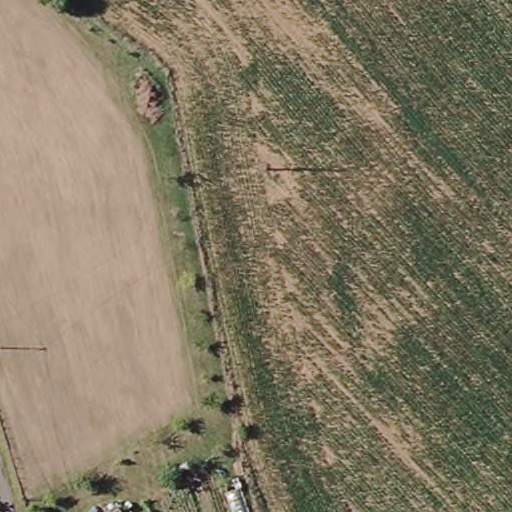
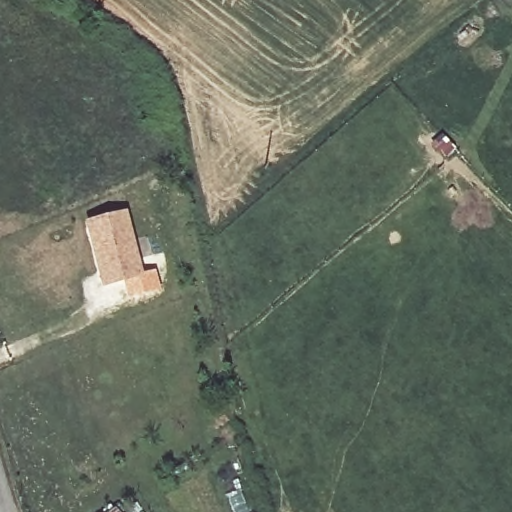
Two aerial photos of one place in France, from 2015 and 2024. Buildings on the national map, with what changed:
new [(122,213),(138,277),(101,287),(84,223),(122,213)]
unchanged [(115,512),(109,512),(113,509),(115,512)]

